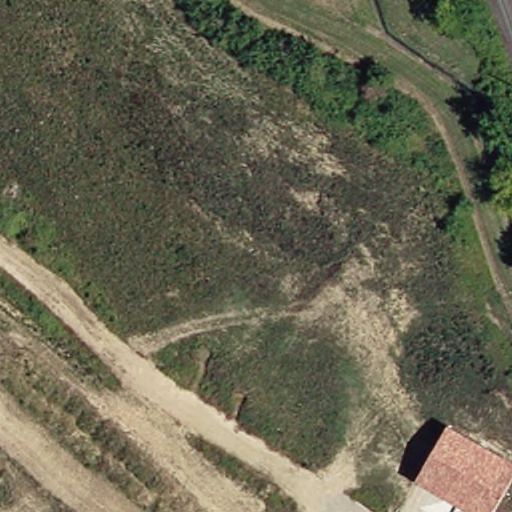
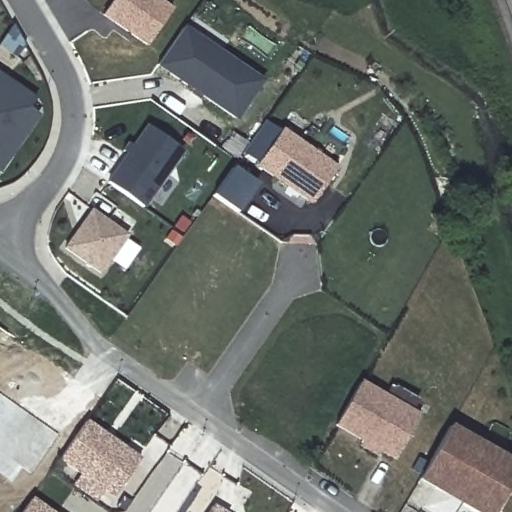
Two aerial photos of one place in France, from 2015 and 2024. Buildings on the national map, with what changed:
new [(121,0),(164,0),(178,10),(154,45),(111,15),(121,0)]
new [(194,31),(202,19),(233,40),(224,52),(266,81),(240,118),(162,64),(187,27),(194,31)]
new [(0,169),(0,73),(40,101),(34,109),(43,116),(15,156),(4,172),(0,169)]
new [(151,124),(186,149),(146,205),(111,181),(151,124)]
new [(287,130),(341,168),(316,203),(262,166),(287,130)]
new [(238,167),(263,185),(245,211),(219,193),(238,167)]
new [(95,213),(130,238),(104,275),(69,250),(95,213)]
new [(342,426),(366,383),(425,417),(401,459),(386,451),(384,456),(365,446),(368,441),(342,426)]
new [(64,462),(90,425),(144,462),(118,499),(108,493),(101,503),(78,487),(85,476),(64,462)]
unchanged [(512,493),(502,512),(479,512),(425,483),(455,426),(512,456),(512,493)]
new [(54,512),(28,512),(36,500),(54,512)]
new [(224,512),(213,512),(216,507),(224,512)]

